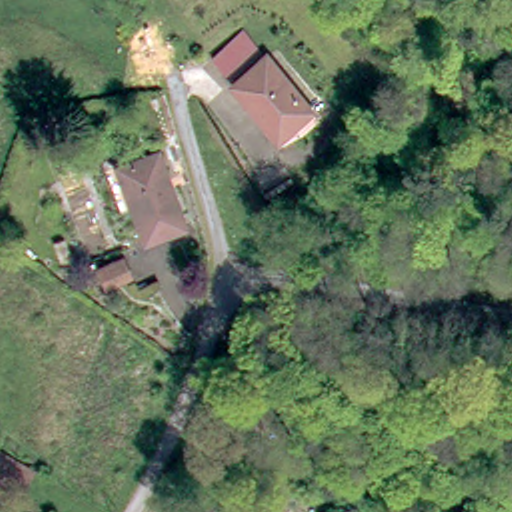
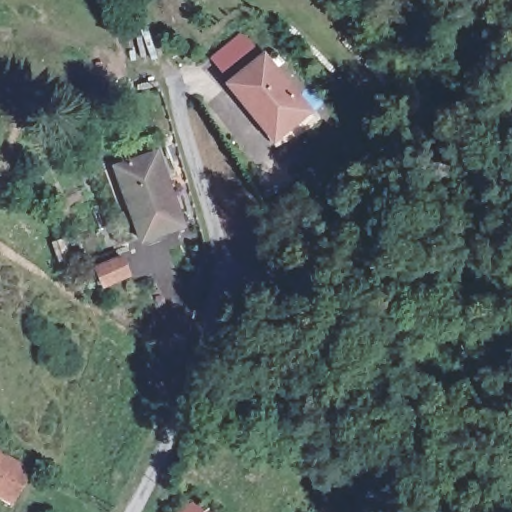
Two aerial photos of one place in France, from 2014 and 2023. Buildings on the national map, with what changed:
unchanged [(226,73),(258,44),(282,69),(246,95),(226,73)]
unchanged [(326,124),(295,150),(246,95),(282,69),(326,124)]
unchanged [(171,182),(163,186),(178,229),(138,246),(112,171),(161,152),(171,182)]
new [(0,451),(32,468),(13,505),(0,499),(0,451)]
unchanged [(198,499),(206,512),(178,512),(198,499)]

